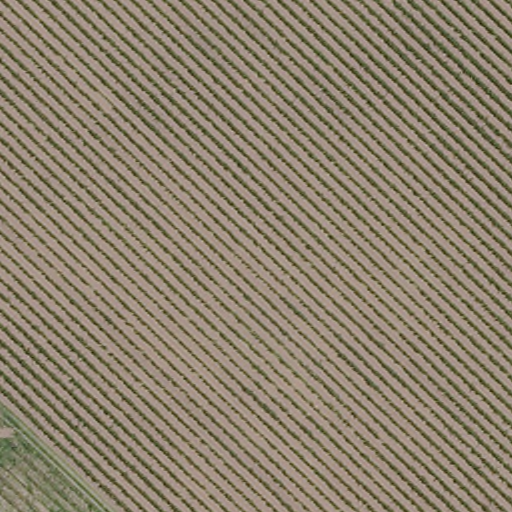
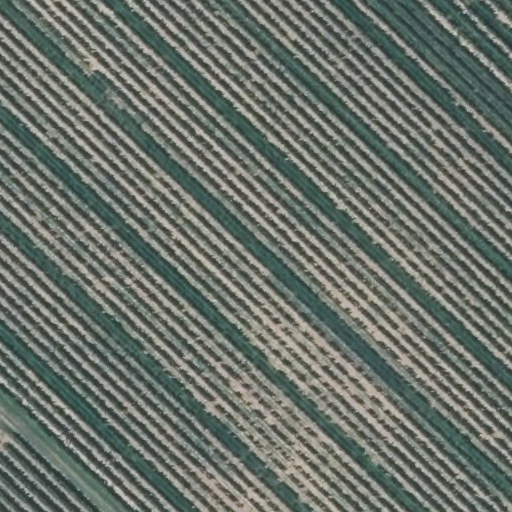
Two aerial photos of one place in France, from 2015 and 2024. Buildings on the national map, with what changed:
[]

